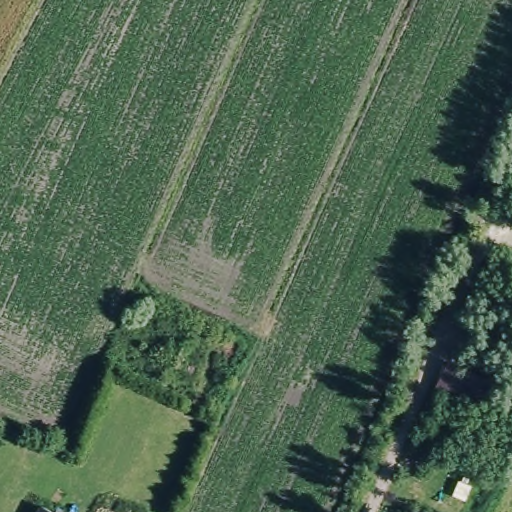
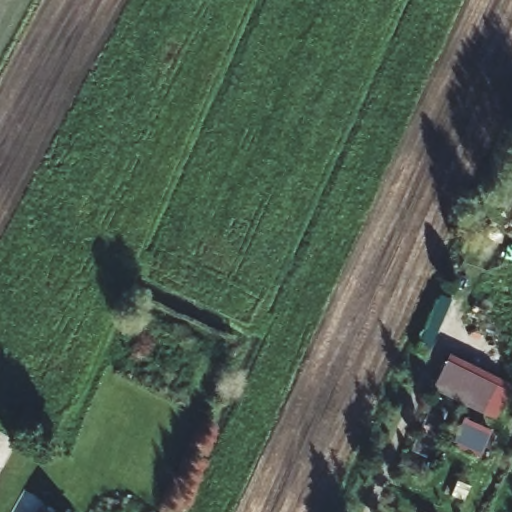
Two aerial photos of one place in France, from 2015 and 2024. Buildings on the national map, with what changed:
new [(497,383),(482,415),(434,391),(449,360),(497,383)]
new [(34,512),(37,507),(47,512),(34,512)]
demolished [(108,512),(97,512),(100,507),(108,512)]

